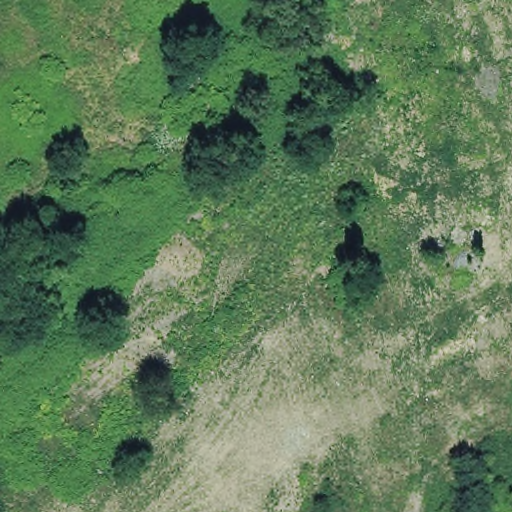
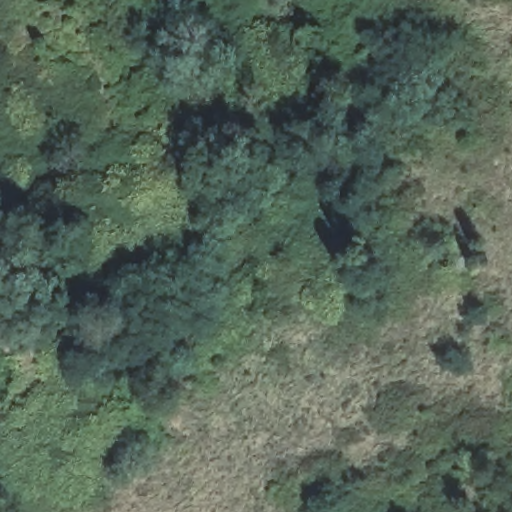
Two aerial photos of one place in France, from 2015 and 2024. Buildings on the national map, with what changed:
[]

